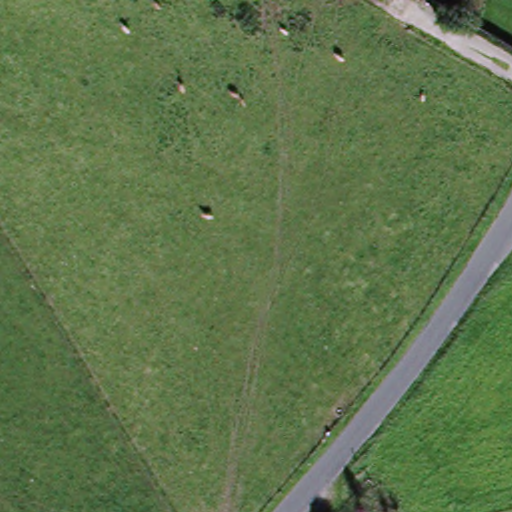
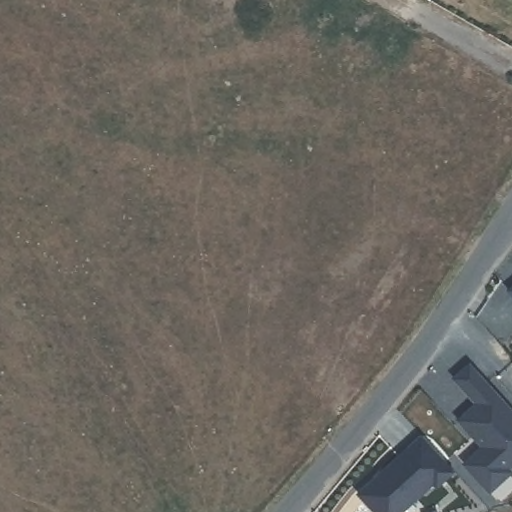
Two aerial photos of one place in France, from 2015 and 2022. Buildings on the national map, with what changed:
new [(512,284),(512,302),(503,291),(512,284)]
new [(474,400),(468,393),(483,380),(512,412),(512,457),(504,464),(508,468),(486,487),(462,461),(481,443),(456,416),(469,405),(474,400)]
new [(434,490),(430,486),(402,512),(369,512),(356,498),(373,482),(375,485),(382,478),(380,476),(420,440),(451,474),(434,490)]

